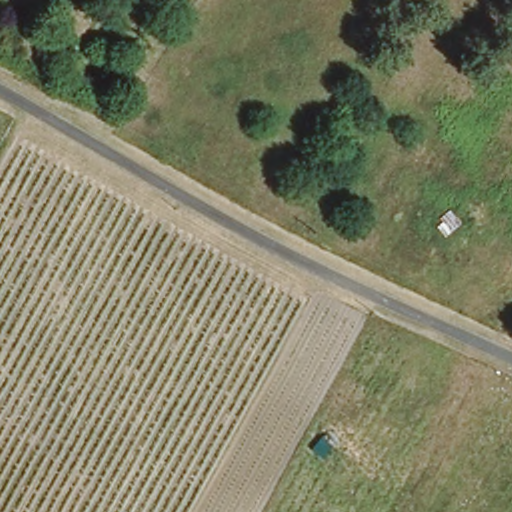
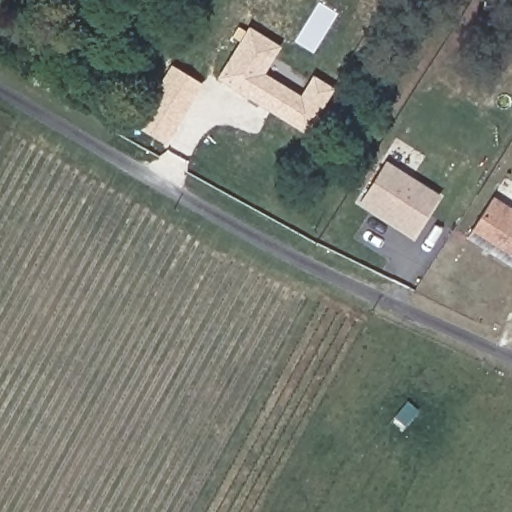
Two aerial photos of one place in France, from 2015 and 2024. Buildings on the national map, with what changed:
new [(251,27),(280,45),(263,72),(305,99),(318,79),(335,91),(308,132),(220,75),(251,27)]
new [(194,89),(199,92),(170,138),(166,136),(162,142),(136,126),(172,68),(197,83),(194,89)]
new [(392,169),(445,205),(421,242),(368,207),(392,169)]
new [(512,214),(512,267),(473,243),(495,204),(512,214)]

